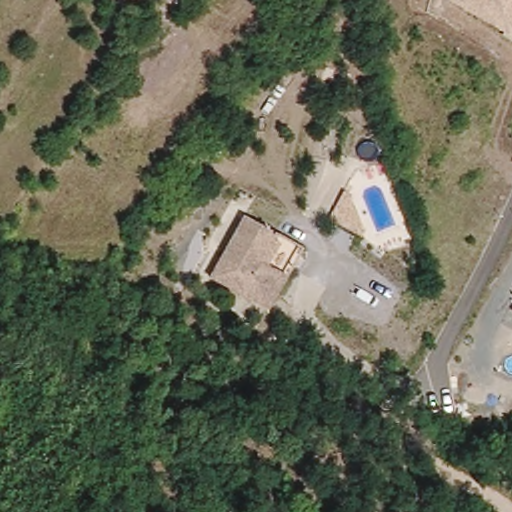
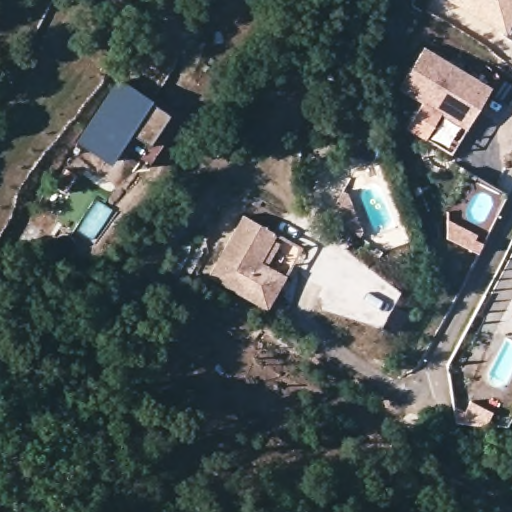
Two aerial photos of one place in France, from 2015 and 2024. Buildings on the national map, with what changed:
unchanged [(512,41),(506,37),(447,2),(449,0),(512,0),(512,41)]
new [(424,49),(492,87),(453,158),(407,133),(421,109),(422,110),(425,106),(399,92),(424,49)]
new [(148,144),(130,133),(111,163),(78,141),(118,80),(168,113),(148,144)]
new [(366,238),(363,243),(330,226),(344,198),(350,201),(366,238)]
unchanged [(301,250),(263,313),(253,311),(247,318),(222,305),(230,289),(211,279),(242,217),(301,250)]
new [(450,224),(481,239),(475,253),(443,237),(450,224)]
new [(479,244),(487,248),(483,257),(475,253),(479,244)]
unchanged [(512,312),(512,318),(510,317),(512,312)]

